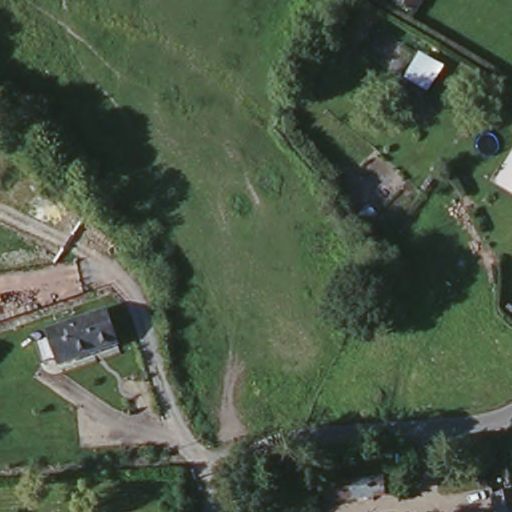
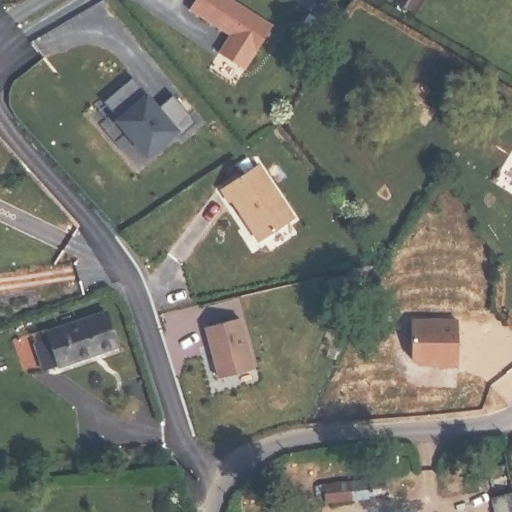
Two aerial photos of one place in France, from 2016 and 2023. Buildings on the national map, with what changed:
new [(197,0),(236,0),(275,25),(246,69),(220,52),(232,34),(190,10),(197,0)]
unchanged [(443,67),(427,95),(405,81),(420,54),(443,67)]
new [(110,124),(115,120),(102,104),(134,76),(159,107),(175,93),(199,125),(142,162),(110,124)]
new [(260,166),(292,220),(255,246),(221,192),(260,166)]
unchanged [(126,343),(62,365),(59,357),(47,361),(41,342),(54,338),(52,330),(113,307),(126,343)]
new [(241,318),(253,372),(217,381),(202,327),(241,318)]
new [(461,318),(460,367),(413,366),(413,318),(461,318)]
unchanged [(384,473),(387,494),(324,502),(320,478),(384,473)]
unchanged [(495,512),(491,497),(512,492),(512,512),(495,512)]

